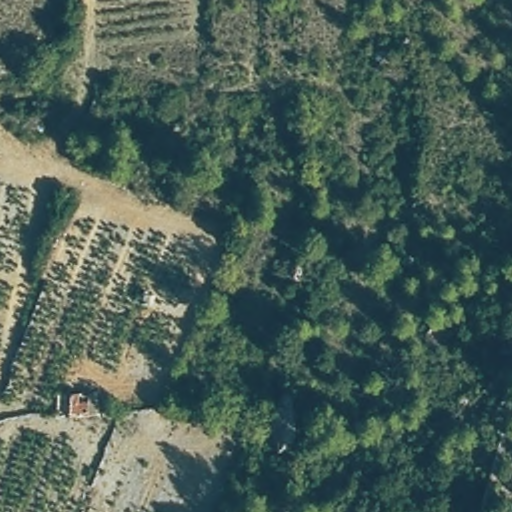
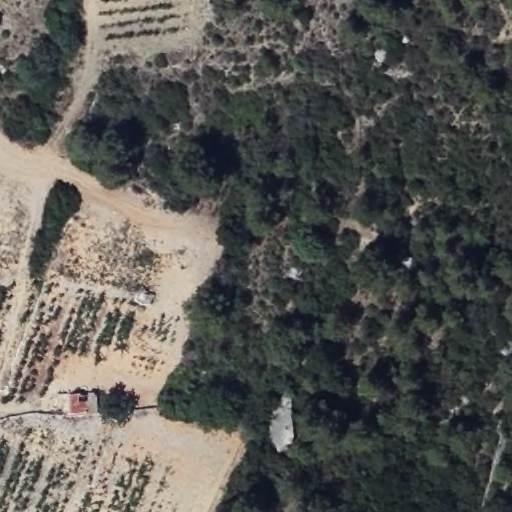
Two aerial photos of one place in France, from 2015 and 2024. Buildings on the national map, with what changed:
unchanged [(67,389),(92,389),(91,408),(69,409),(67,389)]

